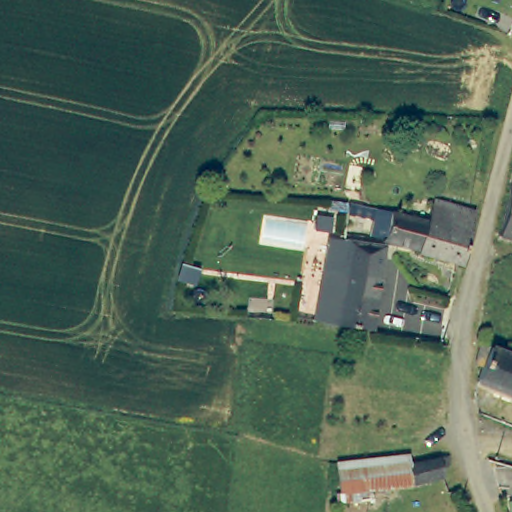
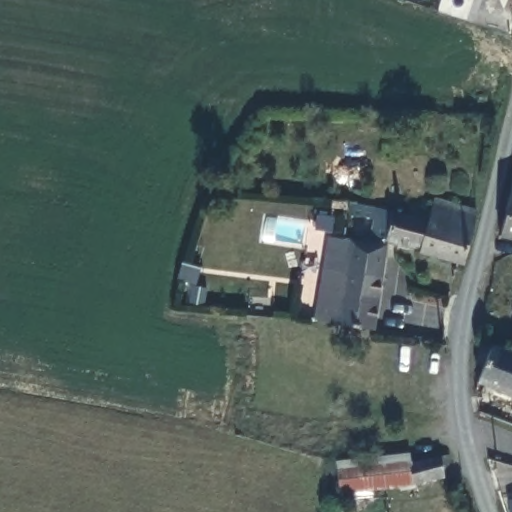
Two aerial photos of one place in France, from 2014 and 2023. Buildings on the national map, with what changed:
unchanged [(498,242),(512,189),(512,248),(501,246),(498,242)]
unchanged [(462,262),(419,251),(426,221),(432,200),(474,210),(472,222),(462,262)]
unchanged [(419,251),(401,245),(385,241),(384,235),(368,232),(369,227),(361,226),(363,217),(350,214),(351,203),(357,205),(387,211),(426,221),(419,251)]
unchanged [(377,280),(343,274),(348,240),(383,245),(377,280)]
unchanged [(370,330),(343,326),(314,321),(322,271),(343,274),(377,280),(370,330)]
unchanged [(479,380),(485,342),(512,353),(512,394),(508,392),(479,380)]
unchanged [(452,457),(454,465),(445,466),(446,478),(382,486),(341,491),(338,469),(375,464),(452,457)]

